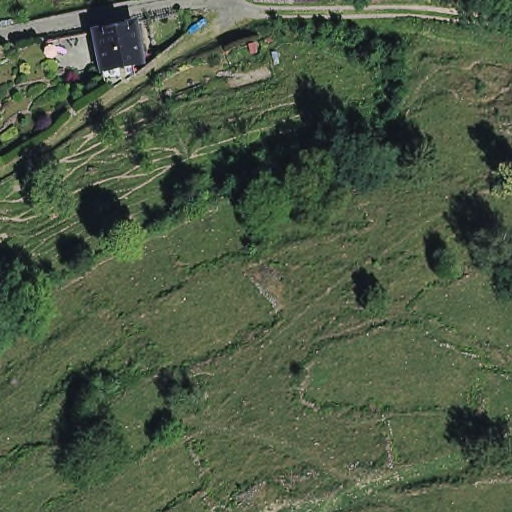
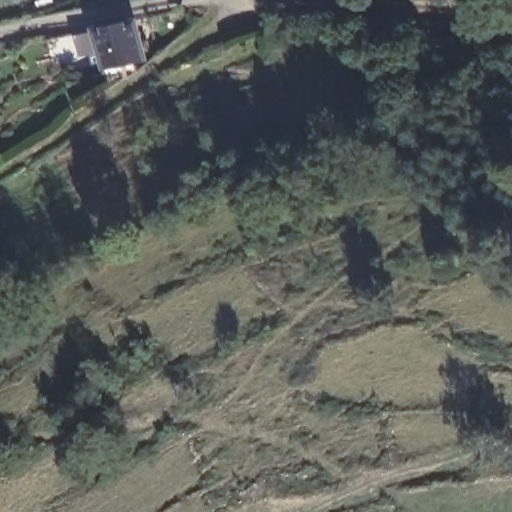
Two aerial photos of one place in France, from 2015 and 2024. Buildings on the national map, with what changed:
unchanged [(123,76),(122,75),(112,79),(110,72),(107,73),(104,56),(72,64),(67,58),(56,42),(63,40),(99,33),(99,32),(140,24),(150,64),(136,74),(123,76)]

